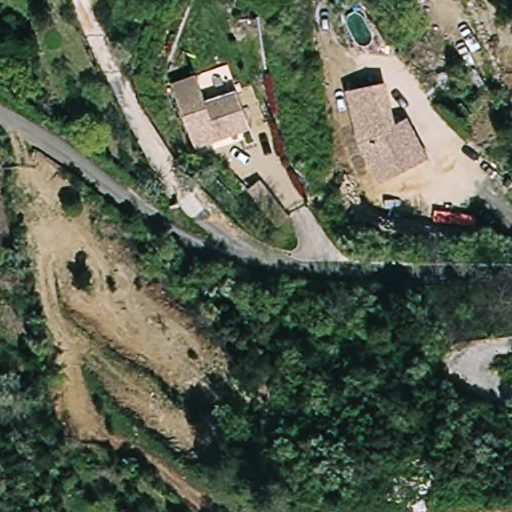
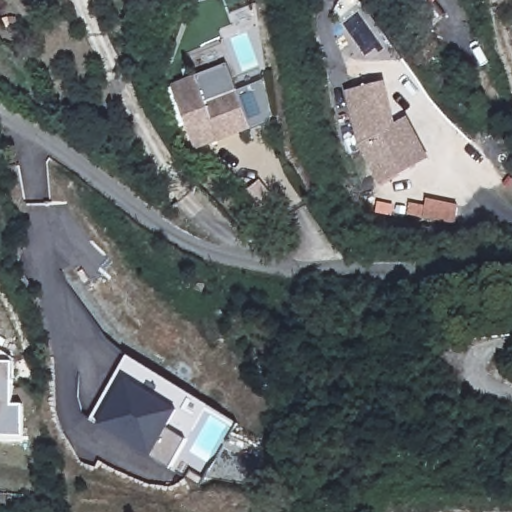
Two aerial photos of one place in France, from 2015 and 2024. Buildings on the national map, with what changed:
unchanged [(197,76),(206,101),(237,90),(251,129),(195,149),(172,85),(197,76)]
unchanged [(429,165),(416,171),(380,187),(360,145),(352,93),(389,87),(396,128),(410,122),(429,165)]
unchanged [(283,219),(270,229),(244,193),(257,184),(283,219)]
new [(0,437),(0,349),(14,358),(14,362),(14,404),(25,405),(24,437),(0,437)]
new [(208,405),(186,440),(169,469),(150,458),(97,425),(89,418),(128,355),(208,405)]

